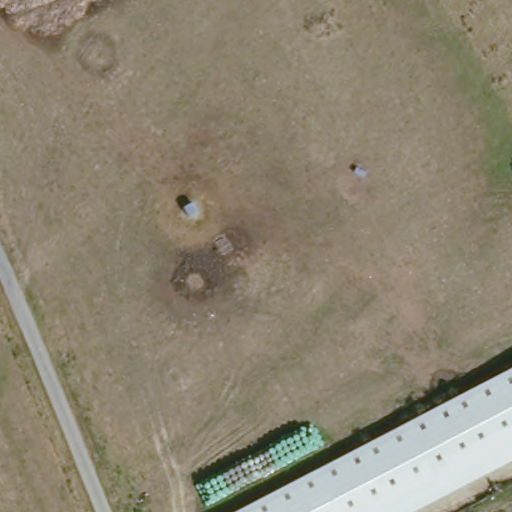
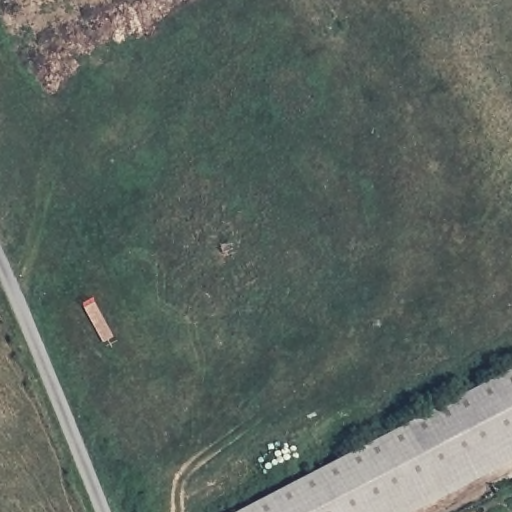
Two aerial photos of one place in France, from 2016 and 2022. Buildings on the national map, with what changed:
unchanged [(390,512),(247,512),(512,374),(512,448),(390,512)]

